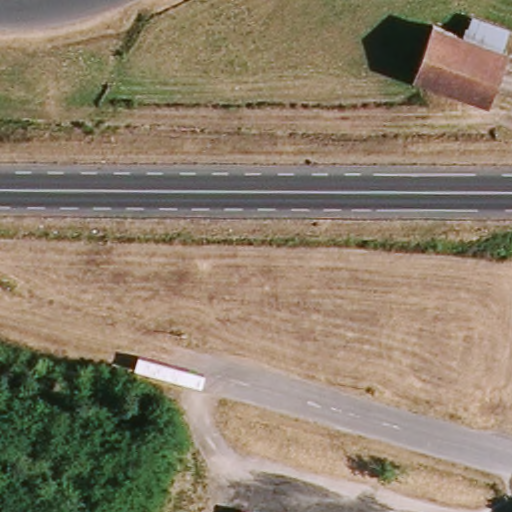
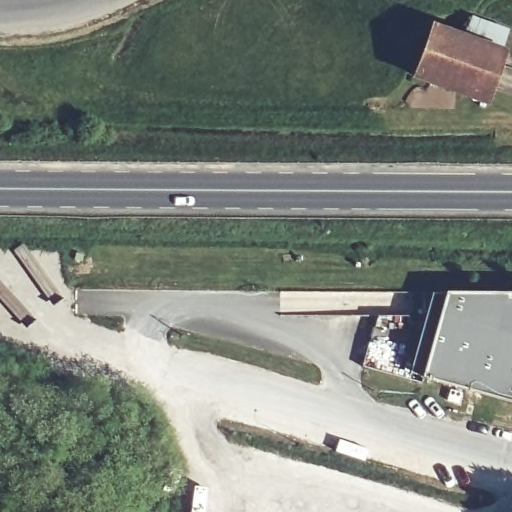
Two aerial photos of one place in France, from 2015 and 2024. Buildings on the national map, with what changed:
unchanged [(485,102),(415,77),(432,26),(504,52),(485,102)]
new [(512,288),(512,398),(422,372),(447,287),(512,288)]

